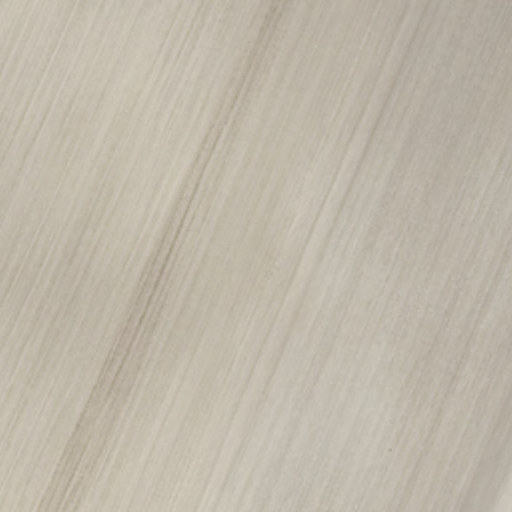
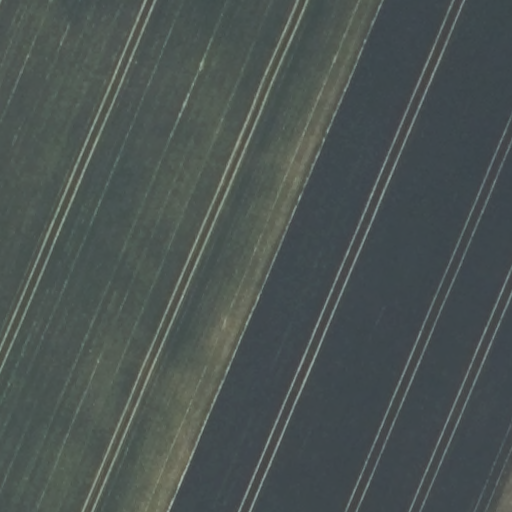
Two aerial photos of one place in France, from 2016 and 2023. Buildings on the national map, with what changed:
[]

